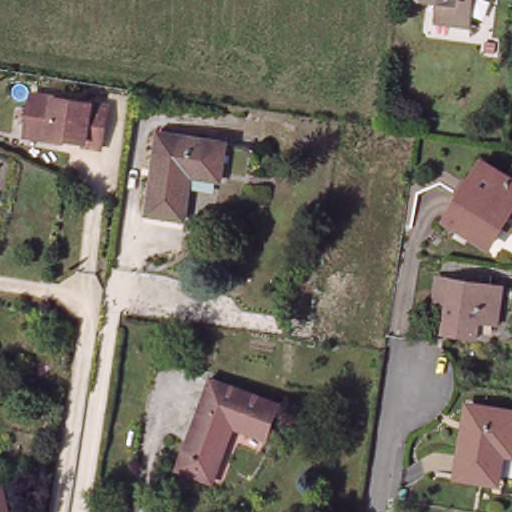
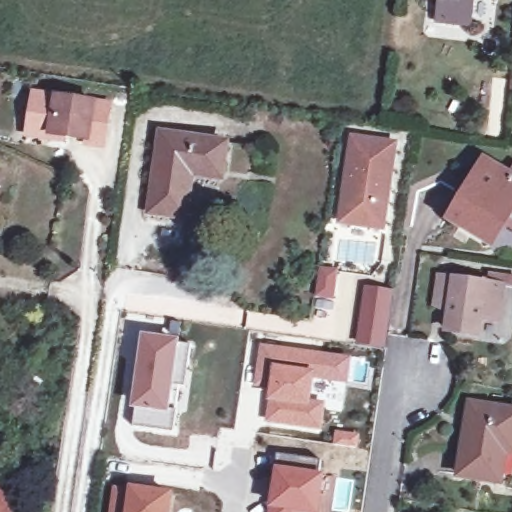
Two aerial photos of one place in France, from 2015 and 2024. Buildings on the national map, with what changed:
unchanged [(477,0),(474,30),(441,26),(444,4),(431,3),(431,0),(477,0)]
unchanged [(110,105),(104,147),(87,145),(87,141),(52,135),(51,139),(27,135),(33,94),(110,105)]
unchanged [(151,214),(162,135),(227,145),(223,172),(222,179),(192,175),(186,218),(151,214)]
new [(349,135),(398,141),(385,232),(336,226),(349,135)]
unchanged [(488,245),(447,221),(481,164),(507,179),(512,169),(512,226),(509,231),(500,225),(488,245)]
new [(319,265),(338,267),(334,300),(315,298),(319,265)]
unchanged [(491,320),(488,336),(458,333),(460,317),(445,308),(449,280),(465,281),(512,289),(512,302),(510,322),(491,320)]
new [(364,284),(394,289),(385,348),(356,345),(364,284)]
new [(180,338),(169,407),(177,408),(173,431),(131,425),(132,406),(142,334),(180,338)]
new [(259,343),(351,356),(348,384),(314,380),(313,398),(327,400),(322,430),(264,423),(268,387),(254,385),(259,343)]
demolished [(239,417),(236,426),(221,466),(218,465),(213,480),(181,468),(203,407),(205,408),(215,380),(281,404),(271,430),(239,417)]
unchanged [(500,482),(460,476),(472,406),(512,413),(512,453),(505,451),(500,482)]
new [(276,462),(325,471),(320,512),(268,512),(276,462)]
unchanged [(8,512),(0,512),(0,480),(8,512)]
new [(132,486),(174,492),(171,512),(109,512),(114,486),(132,486)]

